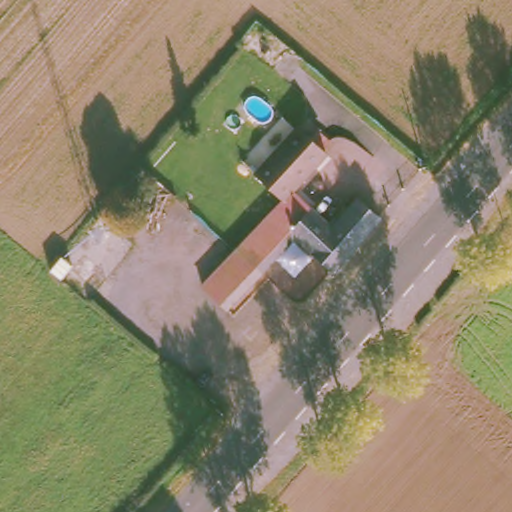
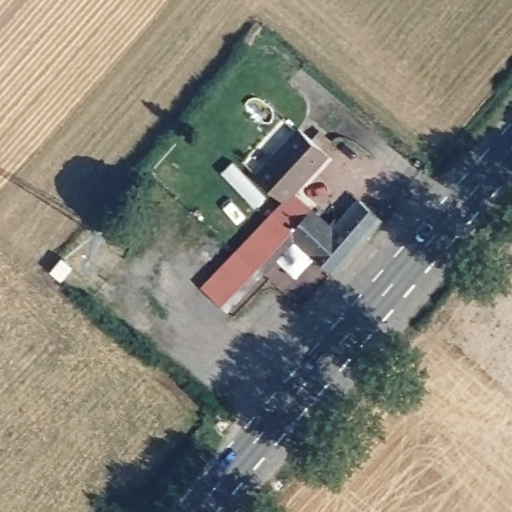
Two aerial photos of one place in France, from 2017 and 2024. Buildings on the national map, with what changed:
unchanged [(328,155),(293,191),(328,227),(355,195),(377,217),(329,272),(291,238),(228,312),(199,285),(278,197),(254,175),(296,127),(328,155)]

